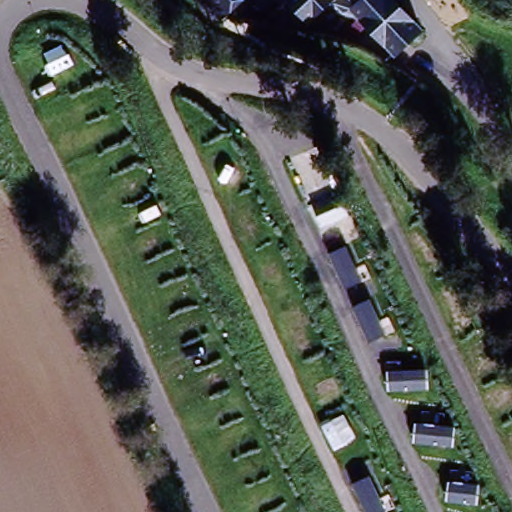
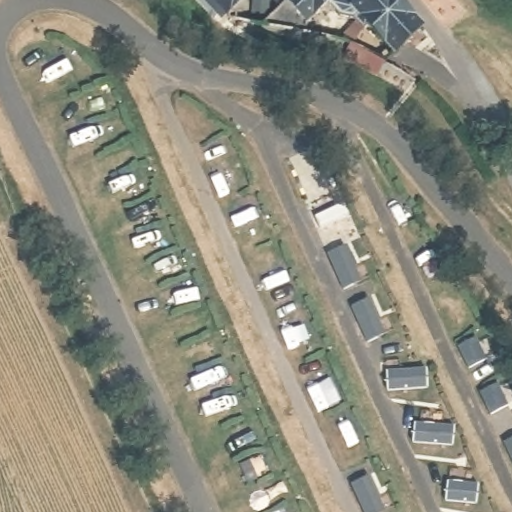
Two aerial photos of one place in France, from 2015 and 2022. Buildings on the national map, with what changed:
unchanged [(217,18),(200,0),(217,0),(226,10),(217,18)]
unchanged [(226,10),(217,0),(238,0),(226,10)]
unchanged [(301,11),(290,0),(315,0),(301,11)]
unchanged [(417,21),(390,45),(362,16),(357,18),(350,9),(333,5),(328,0),(396,0),(417,21)]

